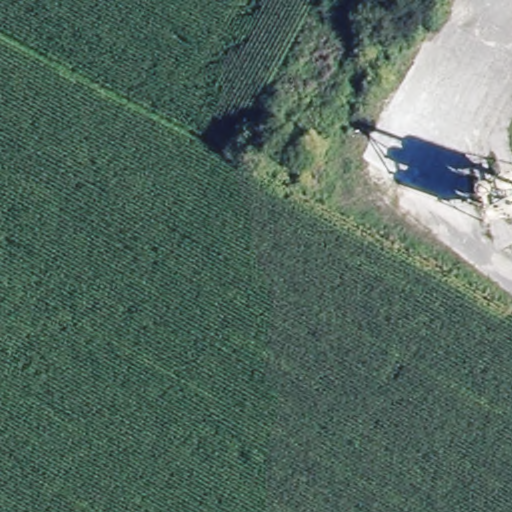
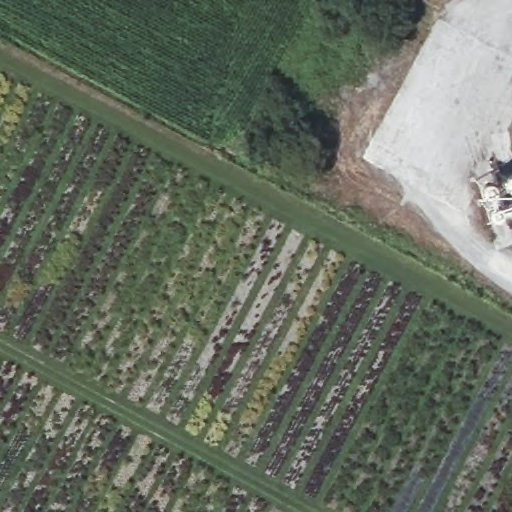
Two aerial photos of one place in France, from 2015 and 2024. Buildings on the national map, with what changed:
unchanged [(485,185),(491,182),(496,184),(503,180),(509,179),(512,179),(512,215),(511,215),(506,211),(500,216),(493,217),(487,214),(487,205),(482,192),(485,185)]

